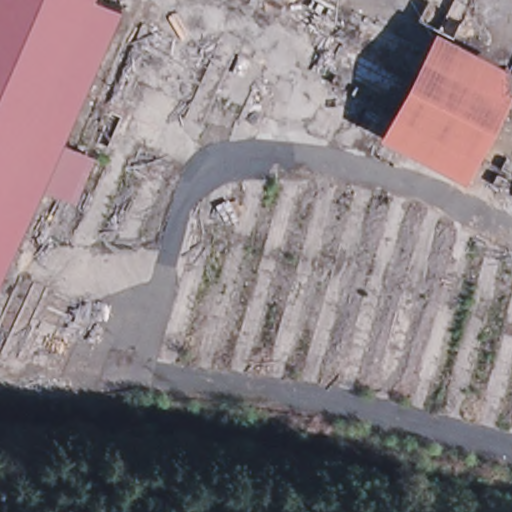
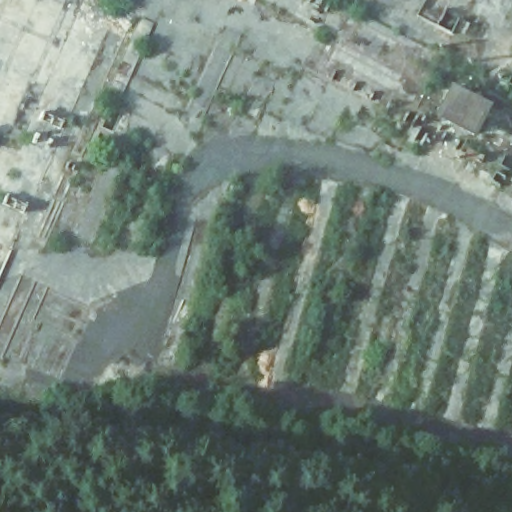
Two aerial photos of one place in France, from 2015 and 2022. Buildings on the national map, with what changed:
demolished [(62,138),(95,152),(75,198),(40,182),(0,272),(0,0),(116,0),(122,3),(62,138)]
demolished [(322,44),(282,23),(296,0),(330,0),(343,7),(322,44)]
demolished [(434,27),(493,56),(512,65),(512,87),(484,144),(506,155),(494,179),(472,169),(468,177),(381,134),(434,27)]

